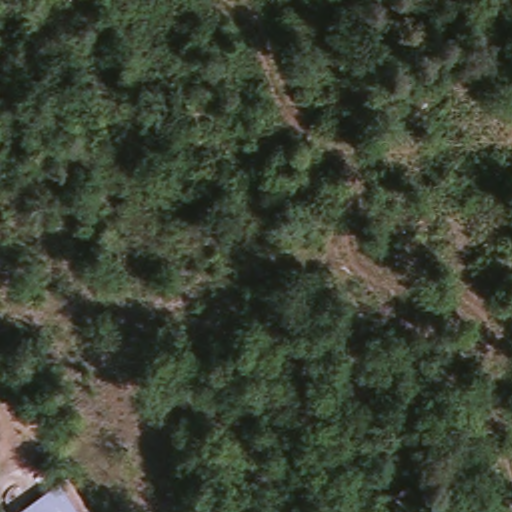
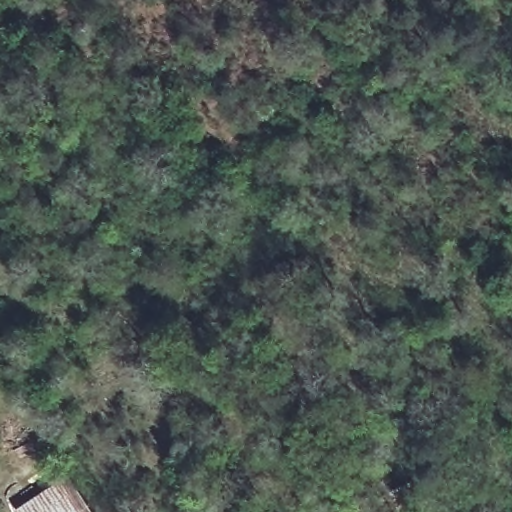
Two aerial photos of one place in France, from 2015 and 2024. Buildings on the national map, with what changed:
unchanged [(21,512),(20,511),(70,476),(93,512),(21,512)]

